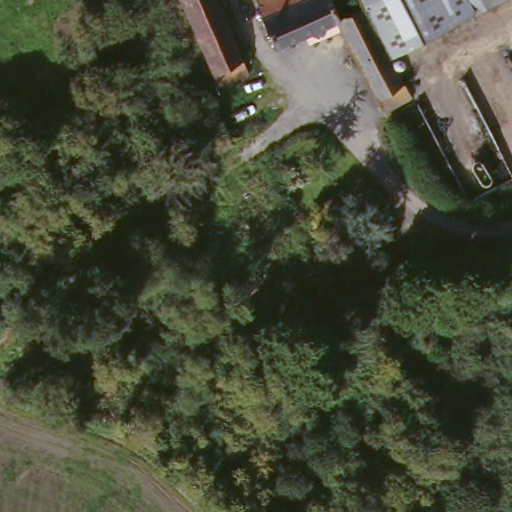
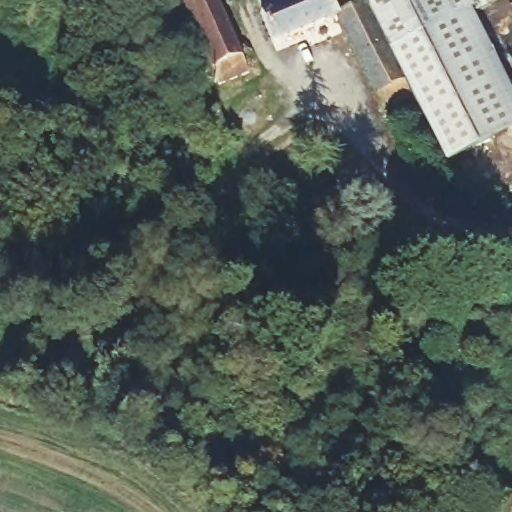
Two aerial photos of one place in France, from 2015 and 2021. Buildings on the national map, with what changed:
unchanged [(222,91),(182,0),(218,0),(254,77),(222,91)]
unchanged [(252,0),(329,0),(337,19),(271,47),(252,0)]
unchanged [(364,6),(362,0),(494,0),(389,51),(364,6)]
unchanged [(337,19),(364,6),(389,51),(410,99),(381,111),(337,19)]
new [(512,131),(444,166),(409,97),(389,51),(473,11),(512,88),(512,131)]
demolished [(208,154),(197,127),(224,119),(231,140),(208,154)]

